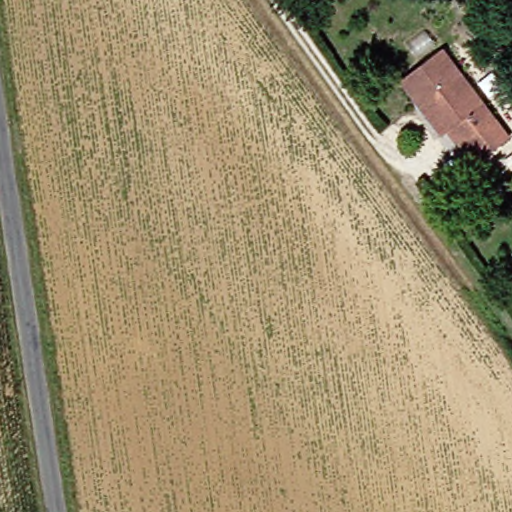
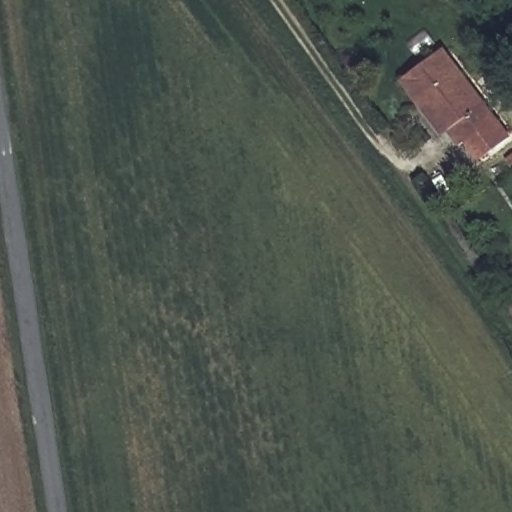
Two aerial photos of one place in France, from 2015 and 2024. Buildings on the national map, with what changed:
unchanged [(424,102),(407,76),(452,47),(470,75),(489,104),(512,139),(512,141),(485,159),(470,136),(461,139),(453,127),(444,132),(424,102)]

